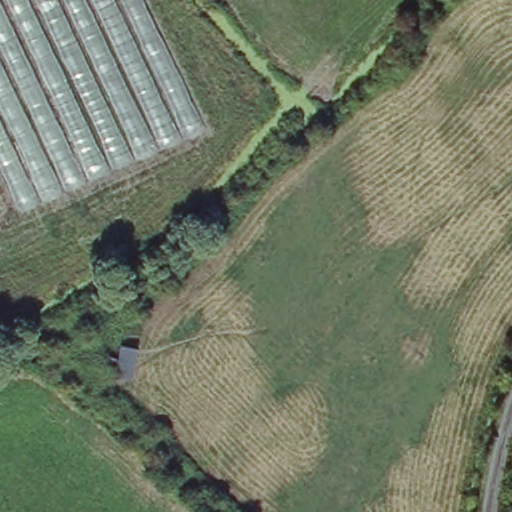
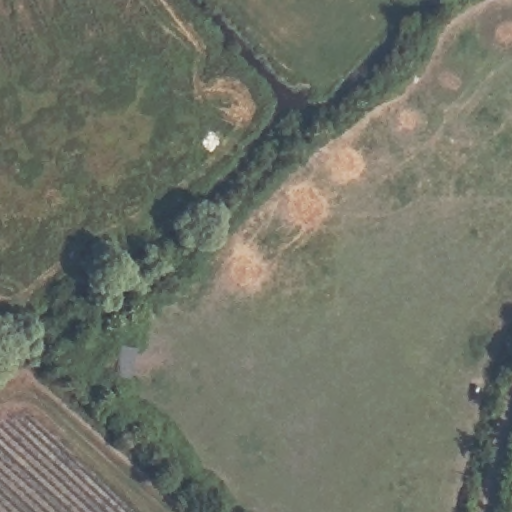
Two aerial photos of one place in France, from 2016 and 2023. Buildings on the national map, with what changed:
demolished [(10,231),(0,209),(0,77),(144,16),(203,158),(10,231)]

